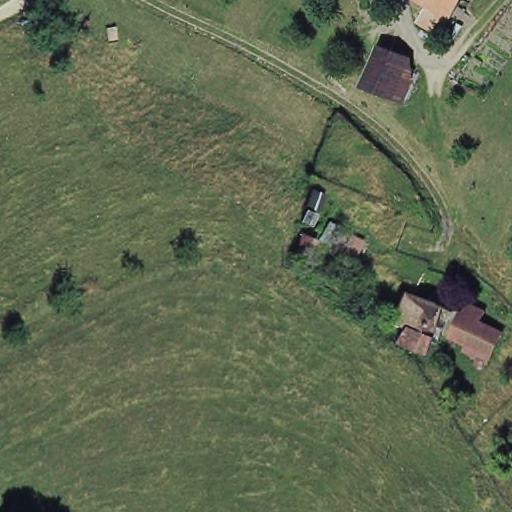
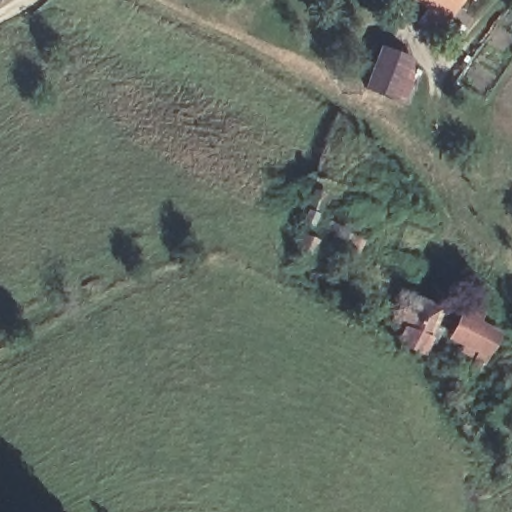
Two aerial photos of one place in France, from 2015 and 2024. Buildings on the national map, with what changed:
unchanged [(472,0),(465,11),(458,21),(428,0),(472,0)]
unchanged [(407,53),(393,96),(361,85),(377,43),(407,53)]
unchanged [(406,333),(427,289),(456,302),(434,352),(428,347),(406,333)]
unchanged [(501,319),(497,325),(512,335),(512,351),(506,363),(467,341),(483,309),(501,319)]

